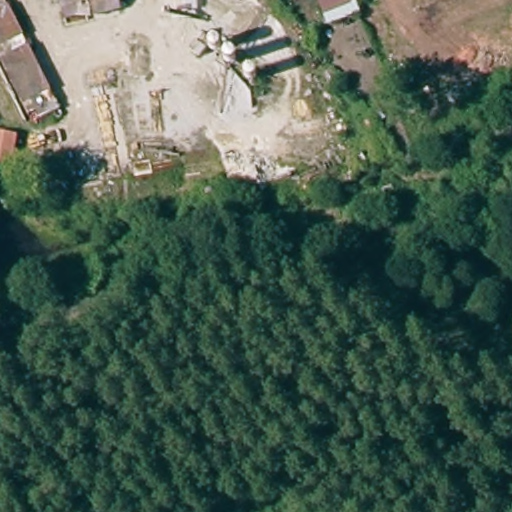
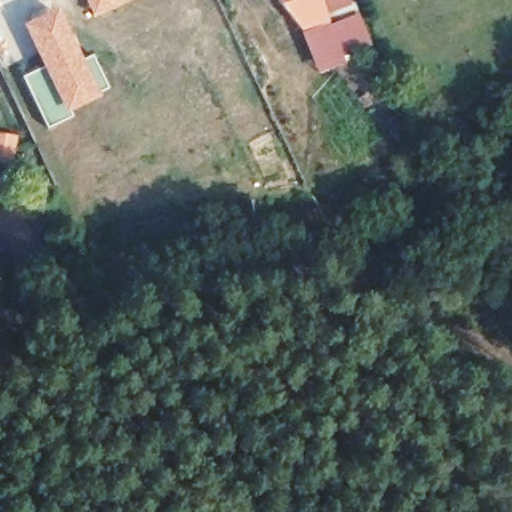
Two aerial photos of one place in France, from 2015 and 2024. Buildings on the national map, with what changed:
demolished [(58,8),(57,0),(94,0),(58,8)]
new [(94,19),(85,0),(134,0),(94,19)]
unchanged [(304,31),(283,5),(279,0),(355,0),(356,2),(327,14),(329,20),(304,31)]
new [(329,20),(327,14),(356,2),(371,47),(346,63),(319,74),(301,34),(304,31),(329,20)]
new [(58,6),(82,58),(93,52),(110,89),(69,113),(68,111),(65,112),(41,67),(20,24),(58,6)]
new [(41,67),(65,112),(68,111),(69,113),(70,117),(46,130),(20,77),(41,67)]
unchanged [(13,166),(0,163),(0,132),(18,136),(13,166)]

